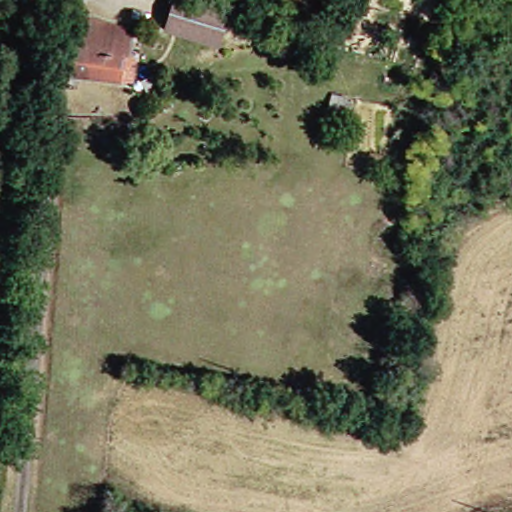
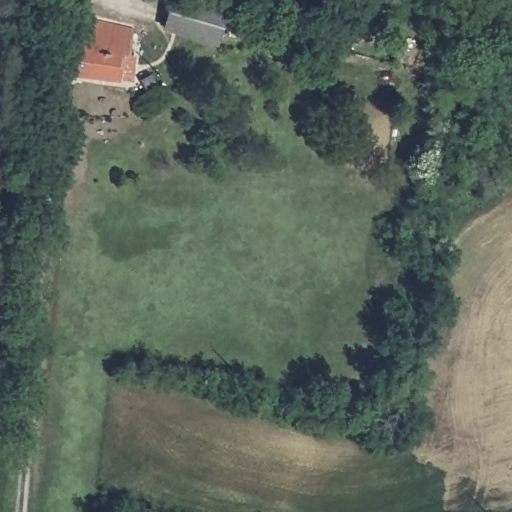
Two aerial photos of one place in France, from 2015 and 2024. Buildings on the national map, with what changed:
unchanged [(164,0),(196,0),(224,8),(210,44),(155,27),(164,0)]
unchanged [(136,52),(140,53),(138,79),(81,74),(85,25),(138,28),(136,52)]

